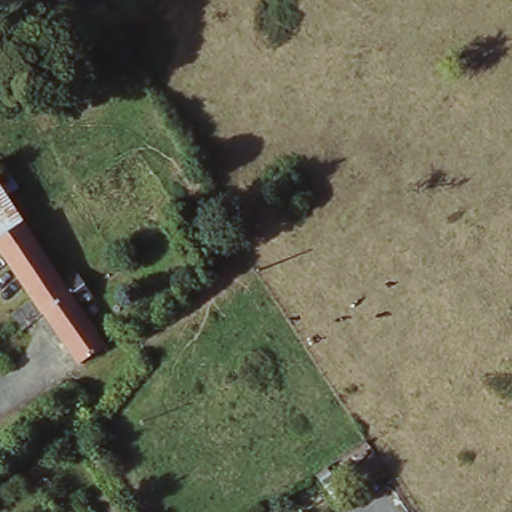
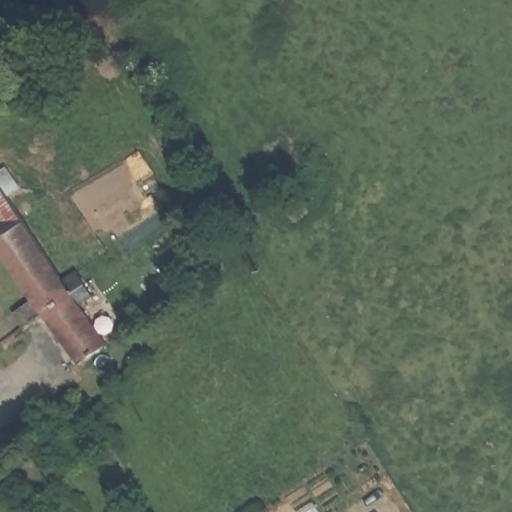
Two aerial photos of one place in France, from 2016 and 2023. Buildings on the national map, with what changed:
unchanged [(51,320),(28,336),(15,317),(36,301),(0,251),(0,189),(71,283),(86,274),(103,296),(88,308),(116,346),(84,367),(51,320)]

